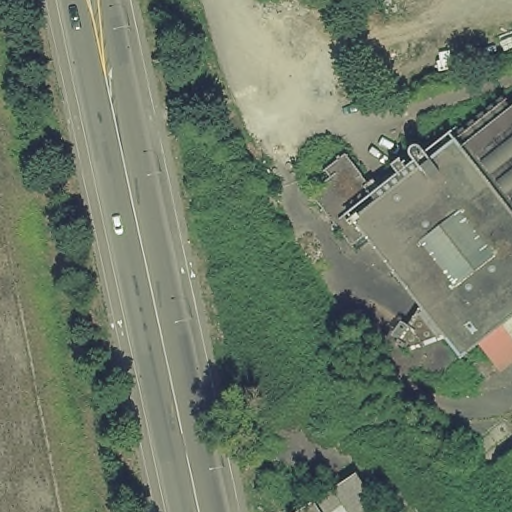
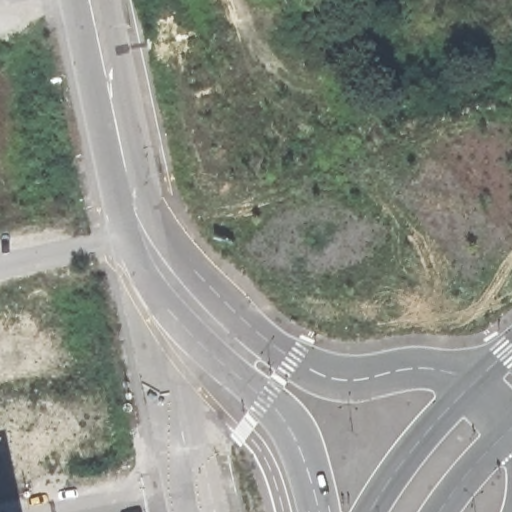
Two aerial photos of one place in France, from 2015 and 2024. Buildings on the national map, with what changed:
demolished [(412,347),(395,332),(417,301),(361,230),(352,245),(316,194),(334,179),(324,168),(346,155),(377,192),(500,96),(510,107),(512,105),(512,361),(505,367),(487,337),(465,362),(443,333),(412,347)]
demolished [(504,460),(512,453),(512,471),(504,460)]
demolished [(292,512),(354,473),(378,512),(292,512)]

